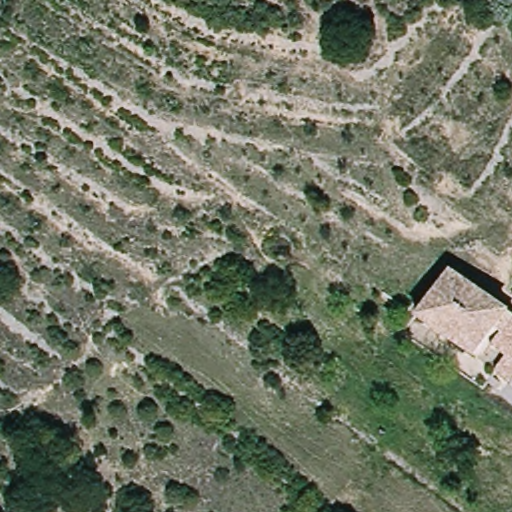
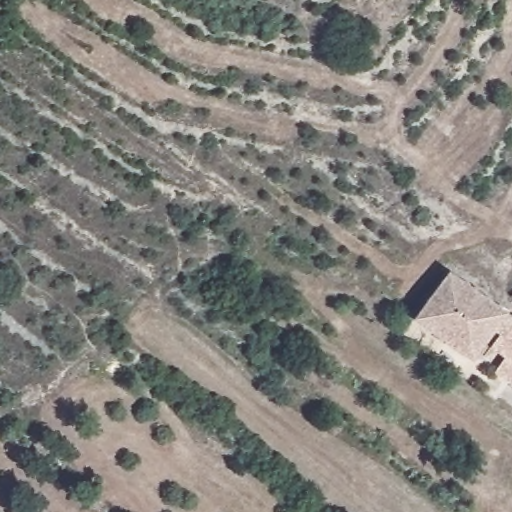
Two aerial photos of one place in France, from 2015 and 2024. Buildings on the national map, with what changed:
unchanged [(512,307),(512,381),(499,372),(511,351),(496,342),(485,362),(413,312),(443,260),(512,307)]

